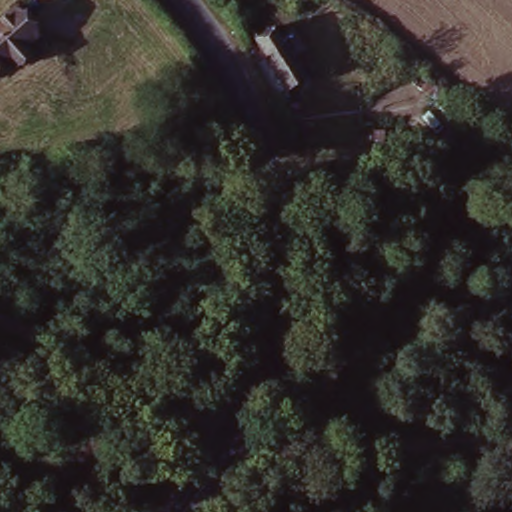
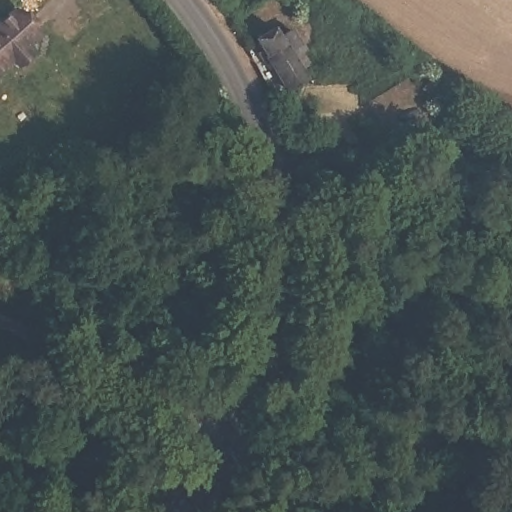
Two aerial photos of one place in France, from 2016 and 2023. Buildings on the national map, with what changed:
unchanged [(38,42),(0,74),(0,30),(17,17),(38,42)]
unchanged [(274,38),(297,85),(277,95),(254,49),(274,38)]
unchanged [(470,152),(457,141),(472,124),(486,134),(470,152)]

